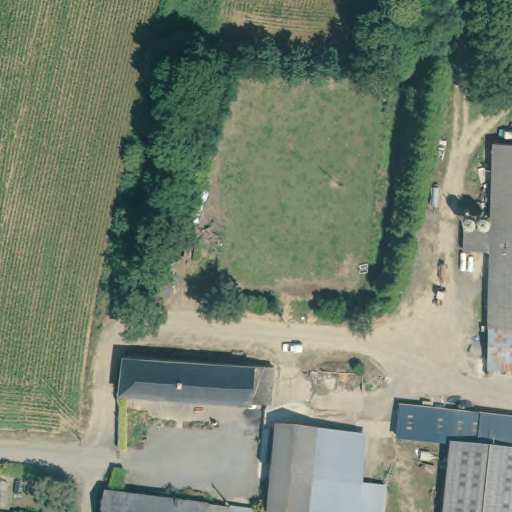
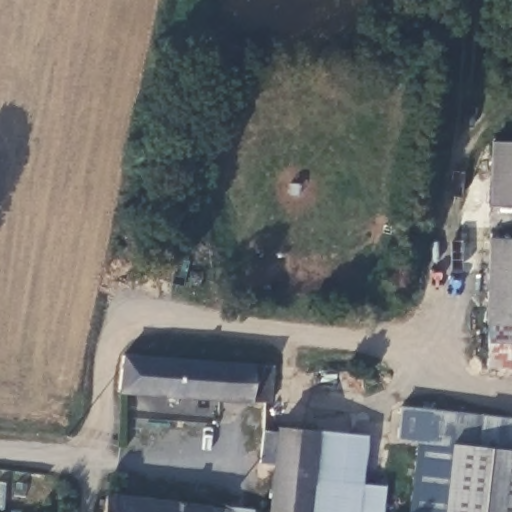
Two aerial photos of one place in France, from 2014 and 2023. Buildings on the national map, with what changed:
unchanged [(488,218),(500,219),(503,136),(512,136),(512,320),(495,319),(498,242),(486,241),(473,240),(475,217),(488,218)]
unchanged [(493,363),(495,319),(512,320),(512,364),(493,363)]
unchanged [(122,345),(268,360),(263,399),(116,383),(122,345)]
unchanged [(457,447),(404,442),(401,441),(404,410),(415,411),(512,421),(512,452),(457,447)]
unchanged [(276,468),(279,436),(294,437),(295,432),(331,435),(326,512),(289,512),(292,469),(276,468)]
unchanged [(372,439),(368,512),(326,512),(331,435),(372,439)]
unchanged [(512,452),(512,512),(444,512),(451,446),(457,447),(512,452)]
unchanged [(253,507),(252,512),(107,512),(110,486),(253,507)]

